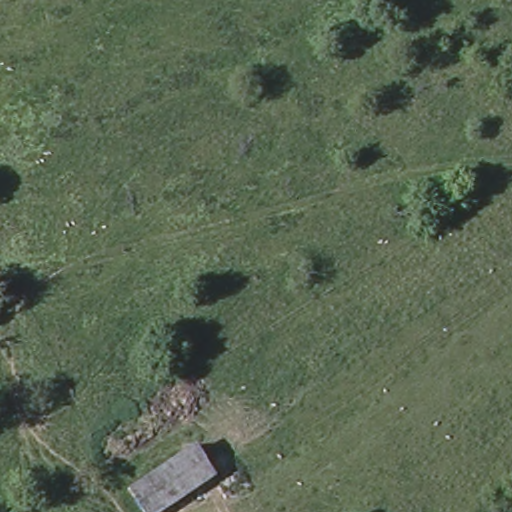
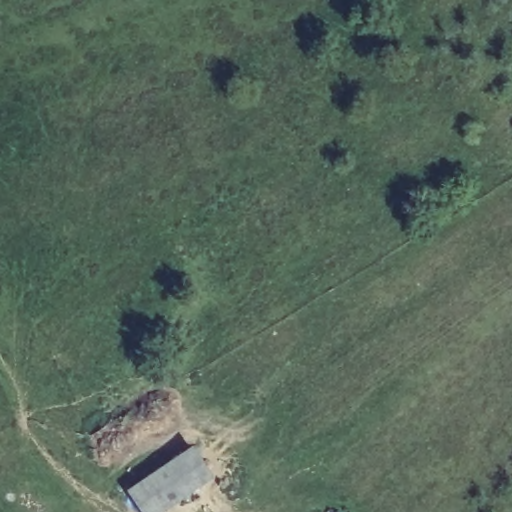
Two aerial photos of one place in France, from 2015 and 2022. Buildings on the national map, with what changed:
unchanged [(141,512),(124,485),(195,437),(214,475),(157,512),(141,512)]

